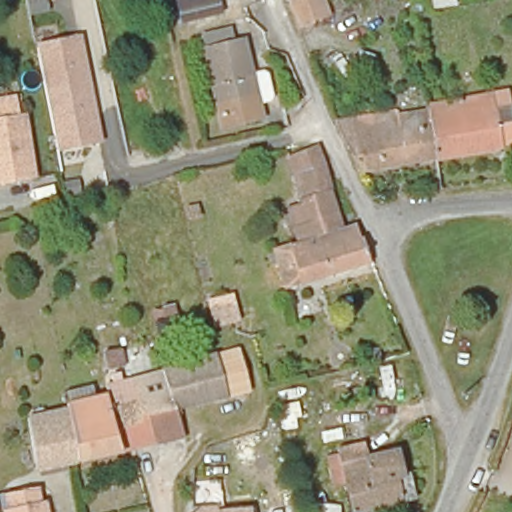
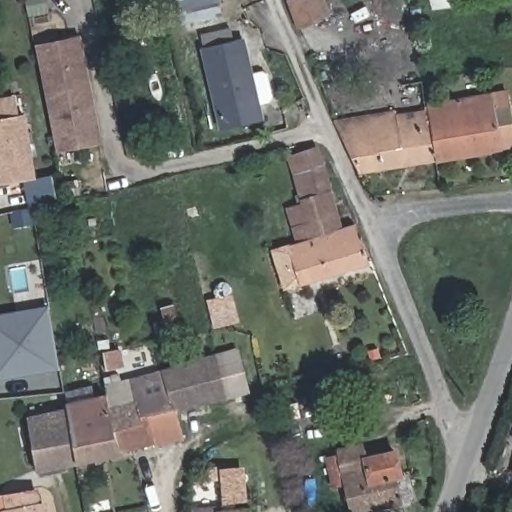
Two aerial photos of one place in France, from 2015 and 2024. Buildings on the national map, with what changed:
unchanged [(174,0),(218,0),(222,17),(180,29),(174,0)]
unchanged [(294,16),(287,0),(321,0),(325,18),(298,25),(294,16)]
unchanged [(428,0),(454,0),(458,10),(431,15),(428,0)]
unchanged [(96,142),(87,145),(71,147),(55,150),(35,47),(51,45),(67,41),(76,40),(96,142)]
unchanged [(205,50),(245,42),(255,101),(260,124),(220,134),(215,109),(205,50)]
unchanged [(432,120),(430,108),(512,94),(512,151),(438,163),(432,120)]
unchanged [(0,179),(0,113),(23,109),(33,173),(0,179)]
unchanged [(348,140),(341,125),(401,113),(402,124),(432,120),(438,163),(363,175),(348,140)]
unchanged [(290,217),(306,214),(299,189),(296,179),(293,168),(322,157),(325,170),(329,183),(342,236),(299,250),(290,217)]
unchanged [(364,245),(374,270),(287,297),(276,258),(299,250),(342,236),(354,231),(360,247),(364,245)]
unchanged [(223,324),(222,320),(211,322),(209,310),(220,307),(217,296),(234,293),(239,321),(223,324)]
new [(0,378),(0,313),(49,305),(59,367),(0,378)]
unchanged [(160,336),(155,314),(174,310),(178,333),(160,336)]
unchanged [(125,353),(130,378),(172,369),(241,348),(244,357),(222,363),(173,378),(109,392),(104,358),(125,353)]
unchanged [(244,357),(252,401),(230,406),(222,363),(244,357)]
unchanged [(180,417),(173,378),(222,363),(230,406),(180,417)]
unchanged [(177,417),(182,437),(184,448),(157,451),(154,436),(146,437),(141,411),(113,416),(111,401),(109,392),(173,378),(180,417),(177,417)]
demolished [(300,427),(295,397),(319,392),(324,425),(300,427)]
unchanged [(113,416),(141,411),(146,437),(154,436),(157,451),(136,456),(79,466),(69,415),(68,411),(111,401),(113,416)]
unchanged [(30,423),(69,415),(79,466),(38,472),(30,423)]
unchanged [(397,455),(403,480),(400,480),(406,507),(384,512),(353,512),(346,485),(336,488),(331,461),(339,458),(340,462),(346,461),(345,457),(356,455),(355,448),(365,446),(369,461),(397,455)]
unchanged [(45,504),(47,512),(9,512),(6,498),(37,493),(40,505),(45,504)]
unchanged [(192,511),(217,509),(249,508),(250,512),(192,512),(192,511)]

